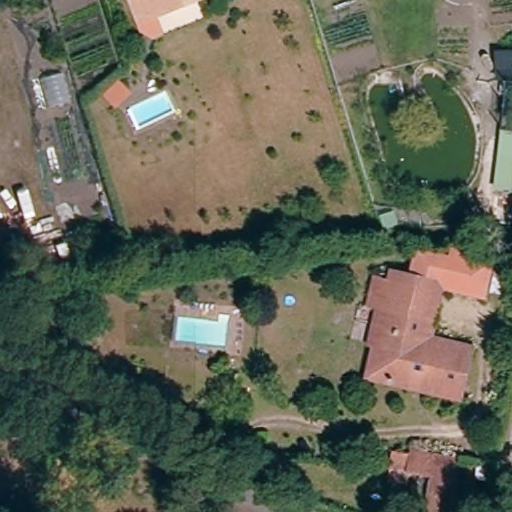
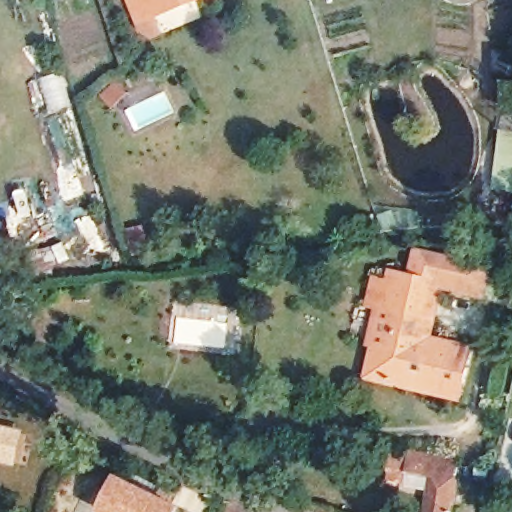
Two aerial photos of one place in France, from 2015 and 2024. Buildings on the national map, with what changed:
unchanged [(137,22),(129,0),(194,0),(137,22)]
unchanged [(495,50),(512,49),(512,190),(496,188),(501,113),(505,115),(508,83),(495,83),(495,50)]
unchanged [(446,285),(412,277),(415,251),(449,257),(451,246),(493,254),(485,297),(444,295),(446,285)]
unchanged [(444,295),(433,341),(472,350),(462,407),(361,383),(366,352),(345,347),(354,307),(364,309),(371,281),(385,282),(389,272),(412,277),(446,285),(444,295)]
new [(0,463),(0,418),(1,418),(1,422),(25,431),(17,468),(0,463)]
unchanged [(408,473),(410,452),(436,457),(456,461),(455,468),(448,512),(427,512),(433,476),(408,473)]
new [(182,507),(180,512),(98,512),(117,474),(182,507)]
unchanged [(4,512),(0,512),(0,509),(4,509),(4,512)]

